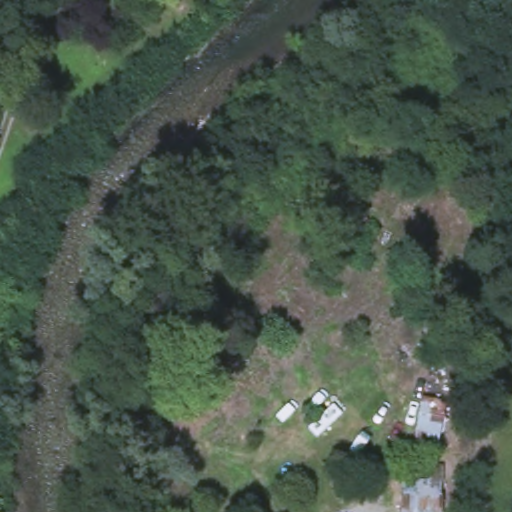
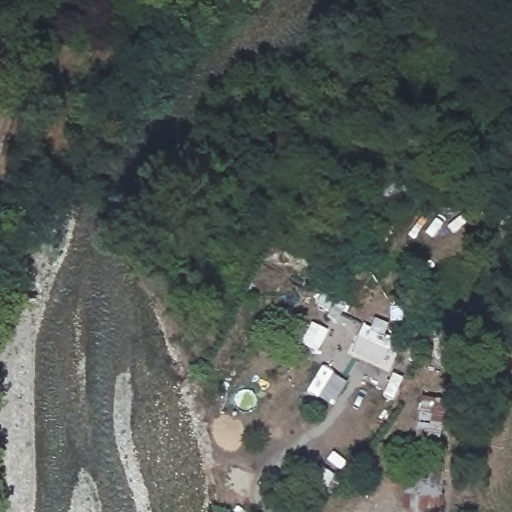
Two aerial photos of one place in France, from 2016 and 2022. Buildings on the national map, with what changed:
unchanged [(409,478),(440,484),(438,512),(432,512),(401,506),(409,478)]

